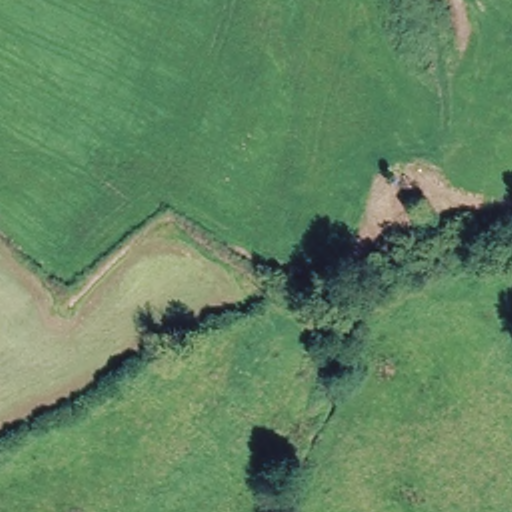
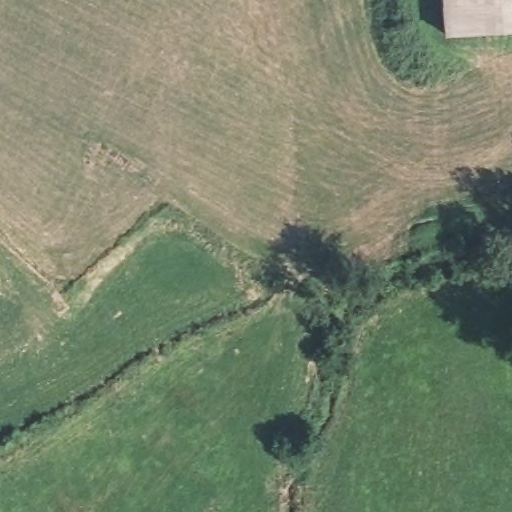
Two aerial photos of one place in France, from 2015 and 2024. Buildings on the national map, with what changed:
new [(441,5),(440,0),(512,0),(512,31),(445,37),(441,5)]

